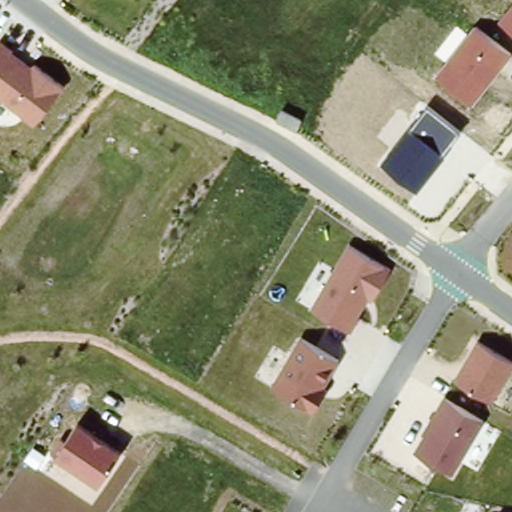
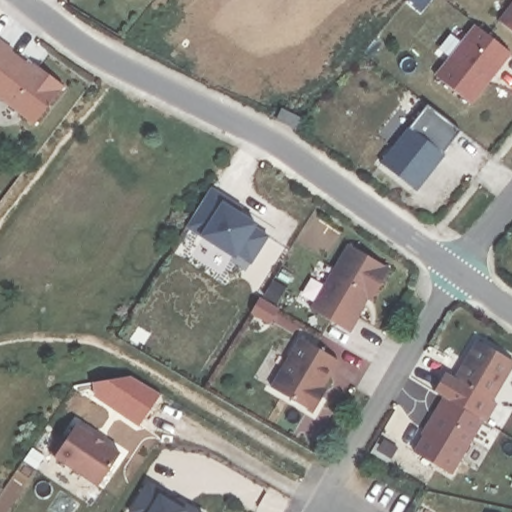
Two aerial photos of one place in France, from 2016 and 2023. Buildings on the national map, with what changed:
unchanged [(512,3),(512,31),(498,21),(512,3)]
unchanged [(435,74),(473,23),(510,52),(471,103),(435,74)]
unchanged [(37,70),(40,67),(64,85),(32,124),(0,101),(0,40),(37,70)]
unchanged [(380,162),(425,105),(460,132),(416,191),(380,162)]
new [(212,187),(231,198),(228,203),(258,223),(256,227),(270,236),(252,264),(238,253),(236,258),(200,235),(186,227),(212,187)]
unchanged [(345,242),(389,267),(372,298),(367,296),(356,313),(358,317),(351,329),(309,306),(345,242)]
unchanged [(512,358),(512,364),(494,397),(454,376),(475,337),(512,358)]
unchanged [(297,340),(338,359),(323,379),(328,385),(314,408),(272,388),(272,387),(297,340)]
new [(442,396),(435,390),(447,372),(454,376),(494,397),(492,401),(497,403),(487,421),(483,419),(442,396)]
new [(92,381),(130,377),(160,394),(138,424),(93,395),(92,381)]
unchanged [(442,396),(483,419),(453,469),(412,448),(442,396)]
unchanged [(57,439),(63,442),(75,425),(118,455),(97,487),(48,455),(57,439)]
new [(203,512),(130,512),(150,480),(203,512)]

